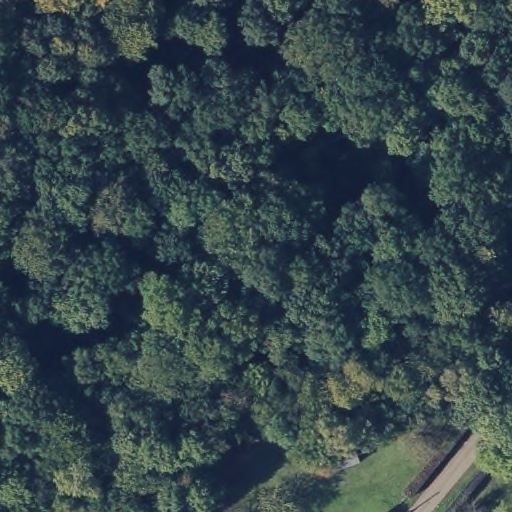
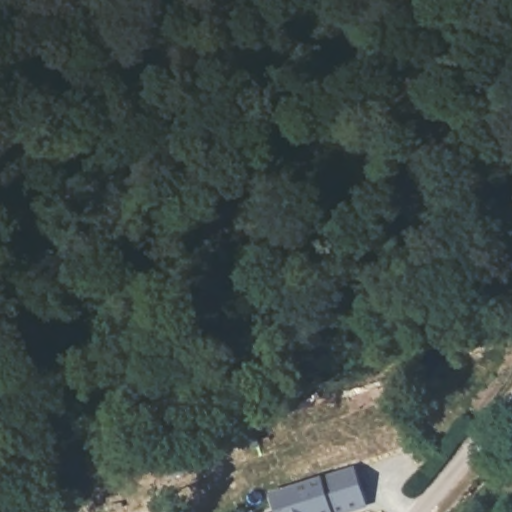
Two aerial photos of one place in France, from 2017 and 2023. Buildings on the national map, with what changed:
new [(272,496),(352,468),(363,503),(340,512),(277,512),(272,496)]

